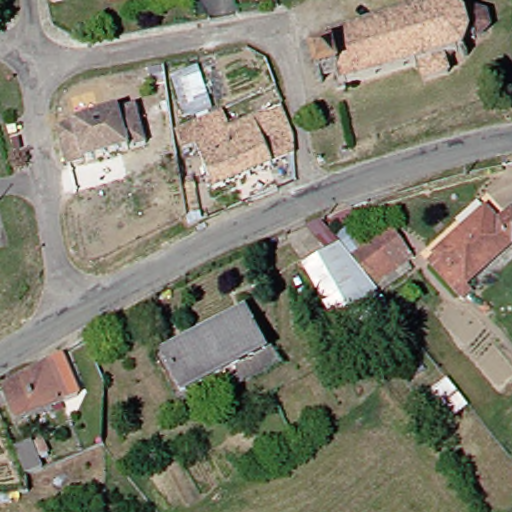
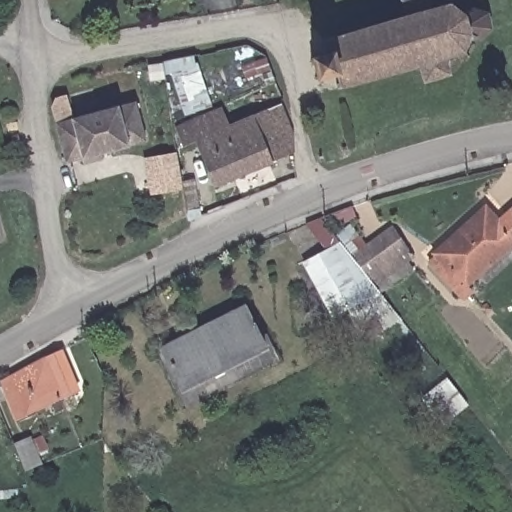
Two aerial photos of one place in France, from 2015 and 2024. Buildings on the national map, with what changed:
unchanged [(399,33),(394,16),(419,10),(423,27),(438,23),(439,13),(444,13),(444,21),(453,31),(460,25),(462,28),(465,26),(479,31),(482,44),(473,56),(469,55),(468,58),(460,56),(456,69),(461,75),(457,77),(452,70),(436,74),(441,91),(416,97),(412,81),(336,100),(337,104),(330,106),(328,100),(331,99),(329,91),(314,94),(314,98),(312,98),(311,95),(307,95),(306,93),(310,92),(306,77),(300,79),(300,75),(305,74),(304,71),(308,70),(309,74),(324,71),(321,59),(317,61),(315,55),(323,53),(324,56),(399,33)]
unchanged [(73,160),(62,120),(142,98),(152,138),(73,160)]
unchanged [(202,143),(189,148),(181,130),(227,110),(235,128),(288,105),(300,136),(301,152),(221,187),(202,143)]
new [(143,158),(176,151),(181,181),(193,179),(199,209),(186,212),(183,189),(149,195),(143,158)]
unchanged [(432,262),(490,213),(502,227),(512,219),(512,245),(457,292),(432,262)]
unchanged [(417,251),(377,282),(354,255),(395,223),(417,251)]
unchanged [(377,282),(380,286),(335,311),(306,259),(340,237),(354,255),(377,282)]
unchanged [(184,396),(158,345),(254,295),(280,347),(184,396)]
unchanged [(68,347),(85,386),(22,414),(7,378),(68,347)]
unchanged [(48,432),(53,445),(44,449),(38,436),(48,432)]
unchanged [(43,465),(27,471),(17,444),(32,438),(33,441),(39,454),(43,465)]

